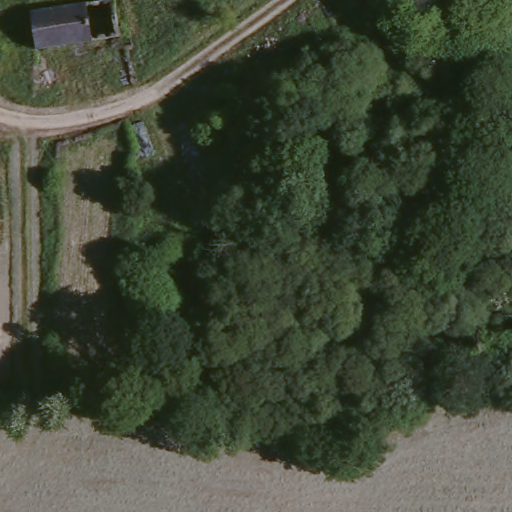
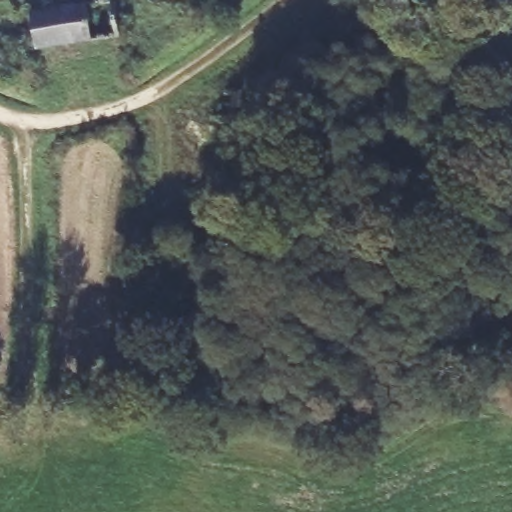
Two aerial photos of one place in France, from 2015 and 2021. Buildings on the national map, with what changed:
unchanged [(40,45),(34,7),(82,0),(88,0),(93,37),(40,45)]
unchanged [(88,0),(119,0),(124,32),(93,37),(88,0)]

